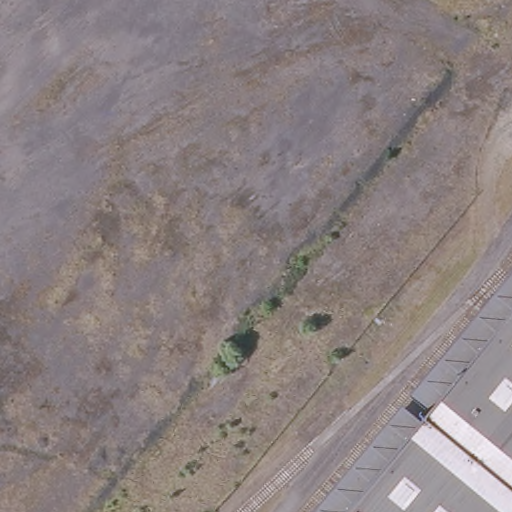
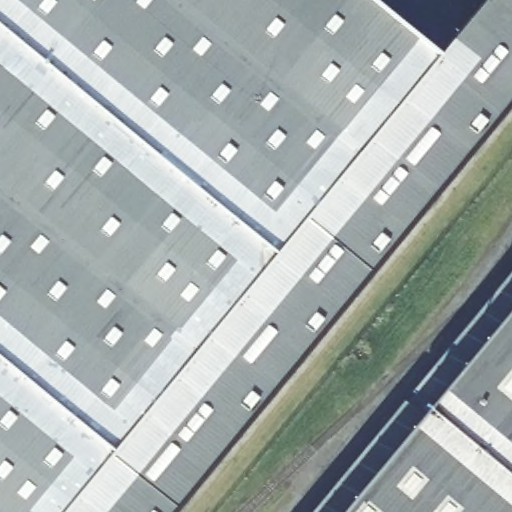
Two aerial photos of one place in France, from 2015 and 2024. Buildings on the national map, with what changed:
new [(479,0),(512,0),(512,97),(171,512),(0,512),(0,0),(372,0),(436,53),(479,0)]
unchanged [(512,313),(512,512),(347,512),(512,313)]

